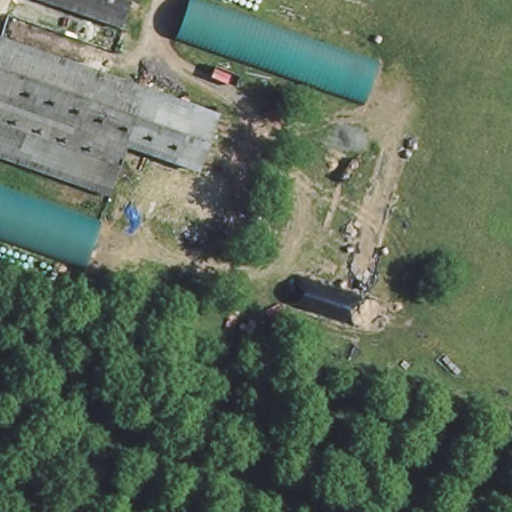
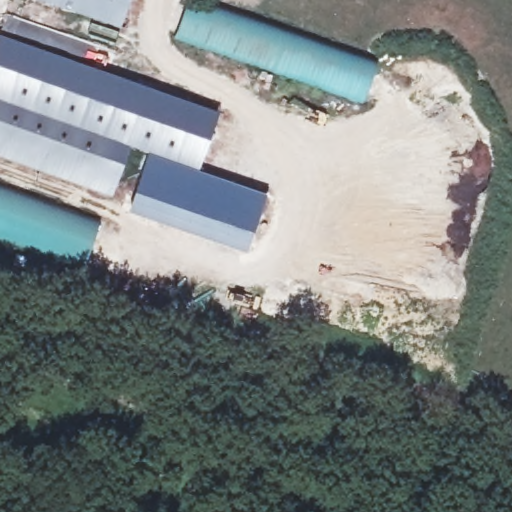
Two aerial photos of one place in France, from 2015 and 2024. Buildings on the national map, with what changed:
unchanged [(122,27),(38,0),(131,0),(122,27)]
unchanged [(373,66),(359,104),(173,40),(188,2),(373,66)]
unchanged [(205,166),(126,144),(110,184),(0,148),(0,41),(2,36),(223,111),(205,166)]
new [(205,166),(202,172),(265,196),(245,254),(127,212),(150,150),(205,166)]
unchanged [(0,241),(0,186),(100,220),(84,271),(0,241)]

